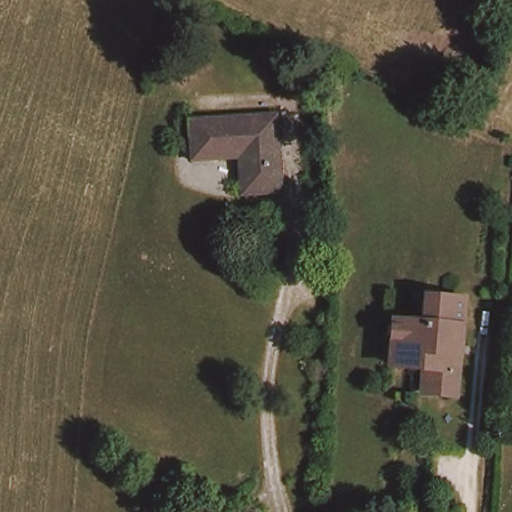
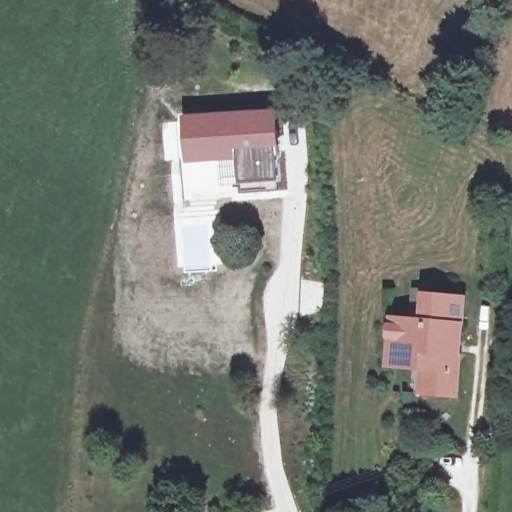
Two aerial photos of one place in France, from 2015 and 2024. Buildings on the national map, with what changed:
unchanged [(264,113),(270,188),(237,190),(232,156),(185,158),(182,112),(264,113)]
unchanged [(427,365),(420,365),(400,363),(401,344),(402,318),(414,319),(415,294),(430,295),(467,298),(462,393),(437,391),(427,390),(427,365)]

